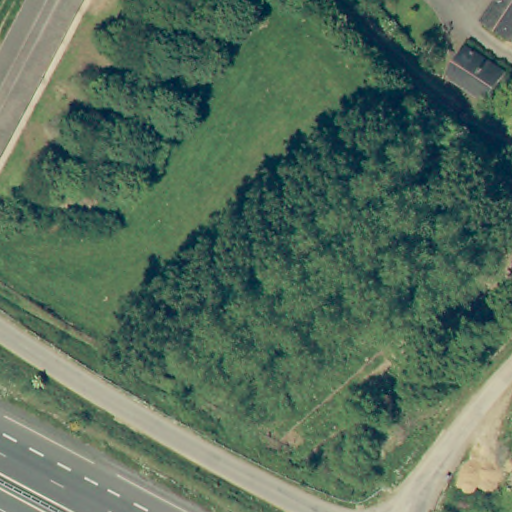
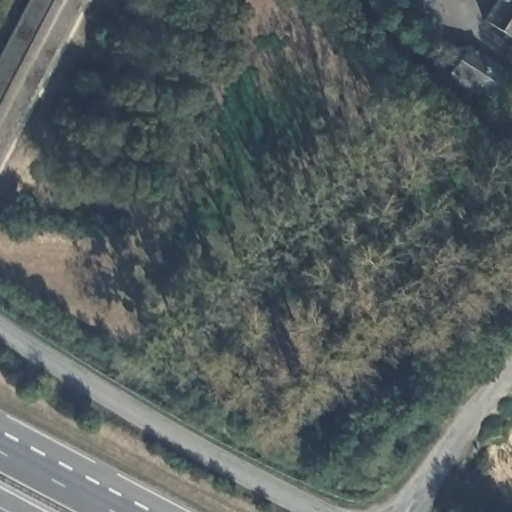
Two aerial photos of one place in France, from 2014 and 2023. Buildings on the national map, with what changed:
unchanged [(0,62),(31,0),(84,0),(0,165),(0,62)]
unchanged [(497,0),(512,0),(512,38),(499,29),(484,20),(497,0)]
unchanged [(508,70),(489,101),(448,76),(467,45),(508,70)]

